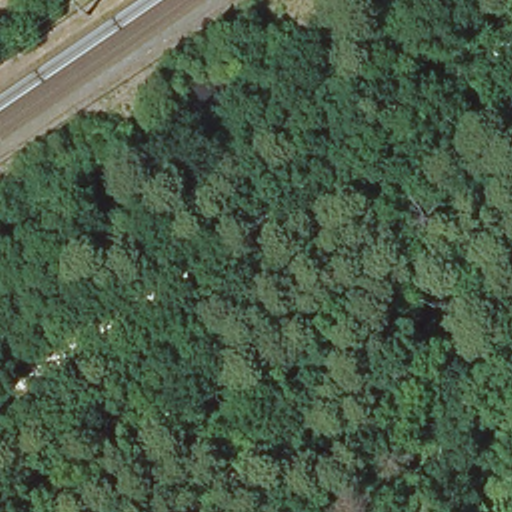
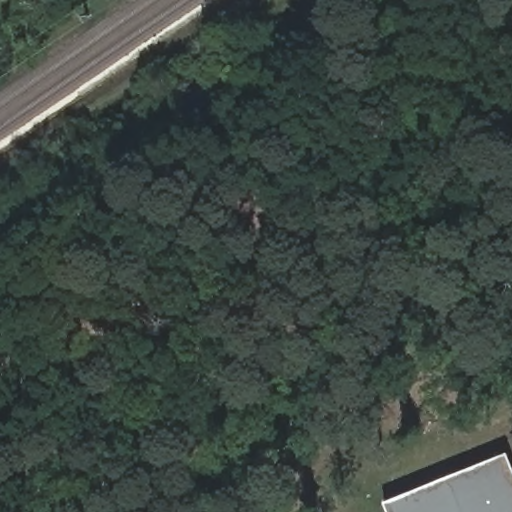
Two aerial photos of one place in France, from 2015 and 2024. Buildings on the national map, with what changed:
new [(388,512),(384,502),(508,452),(512,462),(512,512),(388,512)]

